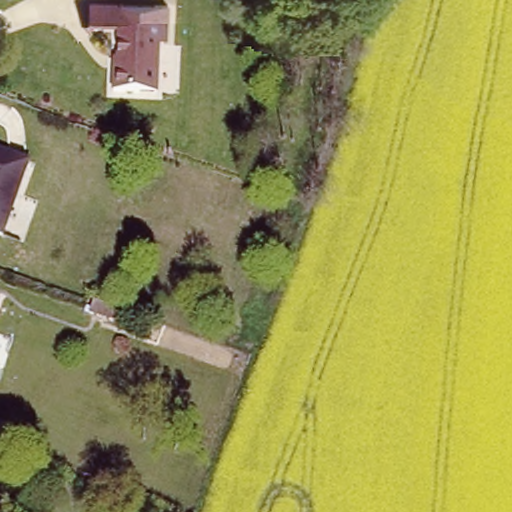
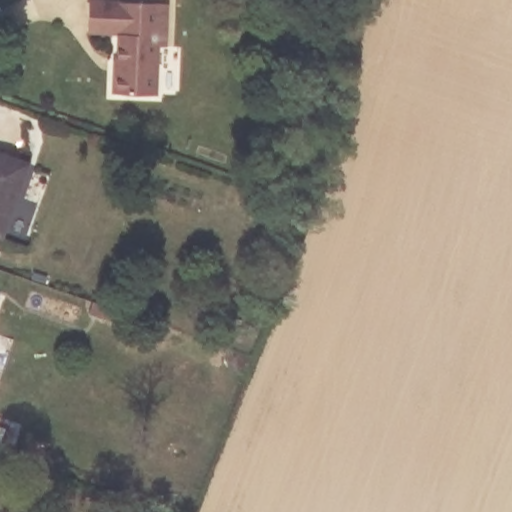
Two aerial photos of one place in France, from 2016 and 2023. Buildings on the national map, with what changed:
unchanged [(114,76),(116,36),(86,35),(88,4),(118,5),(158,6),(166,6),(162,49),(155,48),(152,98),(111,96),(112,76),(114,76)]
unchanged [(26,163),(1,237),(0,236),(0,154),(26,163)]
unchanged [(102,290),(115,295),(111,308),(98,303),(102,290)]
unchanged [(2,297),(0,301),(0,296),(2,297)]

